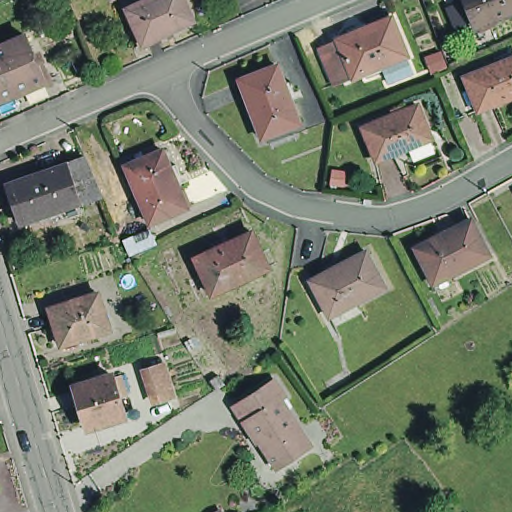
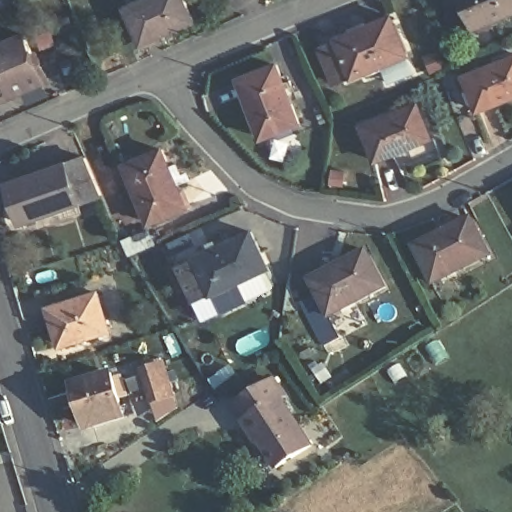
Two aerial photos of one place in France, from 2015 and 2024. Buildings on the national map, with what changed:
unchanged [(192,20),(142,42),(126,6),(141,0),(183,0),(192,20)]
unchanged [(478,23),(469,0),(512,0),(512,10),(478,23)]
unchanged [(350,35),(403,13),(419,52),(365,73),(365,72),(347,79),(332,42),(350,35)]
unchanged [(0,41),(26,29),(47,75),(0,96),(0,41)]
unchanged [(477,111),(464,78),(512,59),(512,98),(477,111)]
unchanged [(302,123),(264,136),(244,77),(282,64),(302,123)]
unchanged [(376,162),(362,128),(416,106),(430,139),(376,162)]
unchanged [(156,221),(124,167),(157,147),(190,201),(156,221)]
unchanged [(21,217),(8,179),(68,159),(86,152),(102,190),(81,197),(85,208),(63,215),(59,204),(21,217)]
unchanged [(434,285),(414,249),(469,220),(489,256),(434,285)]
unchanged [(256,230),(273,267),(217,293),(200,256),(256,230)]
unchanged [(386,287),(331,316),(311,280),(366,250),(386,287)]
unchanged [(194,278),(187,263),(196,259),(203,274),(194,278)]
unchanged [(100,294),(111,331),(62,345),(51,308),(100,294)]
unchanged [(153,402),(142,369),(158,364),(169,397),(153,402)]
unchanged [(91,425),(77,383),(114,371),(127,413),(91,425)]
unchanged [(284,396),(314,444),(280,465),(262,437),(260,438),(237,403),(277,378),(287,394),(284,396)]

